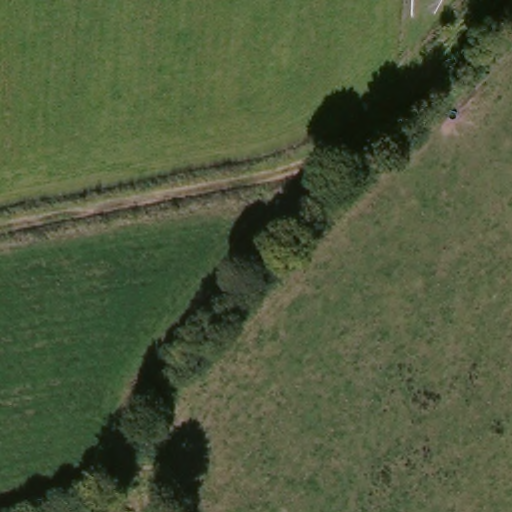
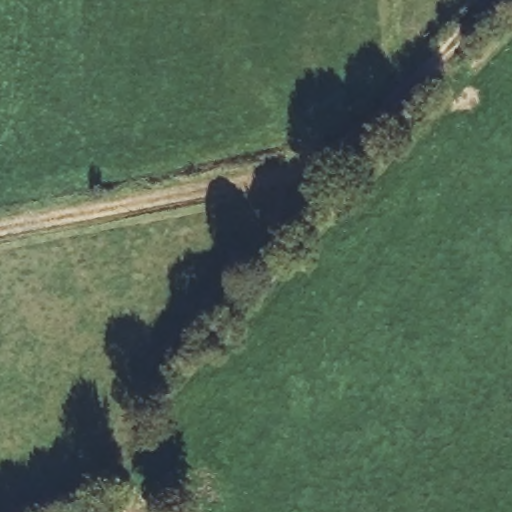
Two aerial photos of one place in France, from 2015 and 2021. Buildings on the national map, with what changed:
[]

